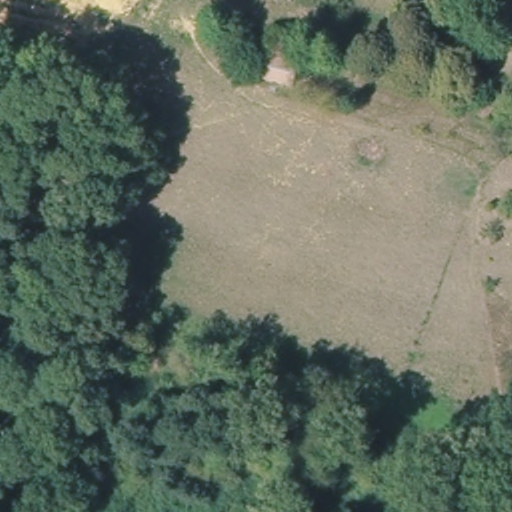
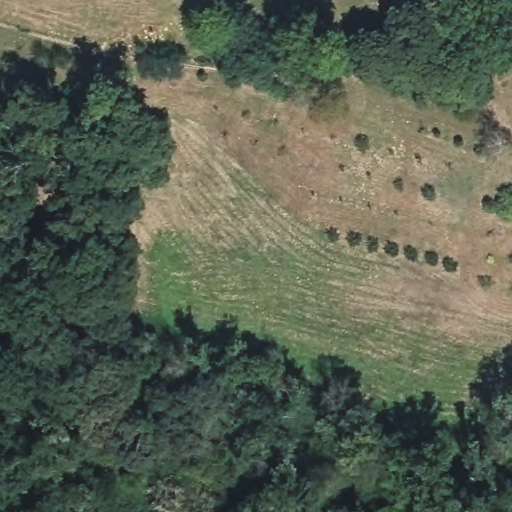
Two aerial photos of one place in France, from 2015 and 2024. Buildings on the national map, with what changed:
unchanged [(295,89),(262,78),(268,52),(303,62),(295,89)]

